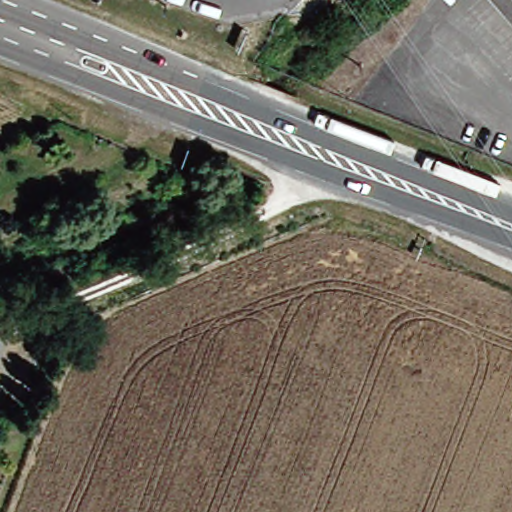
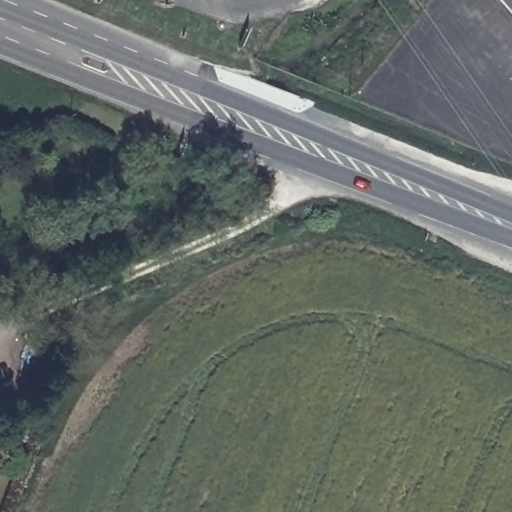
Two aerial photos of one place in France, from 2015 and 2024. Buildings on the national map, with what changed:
unchanged [(512,17),(496,0),(512,0),(512,17)]

